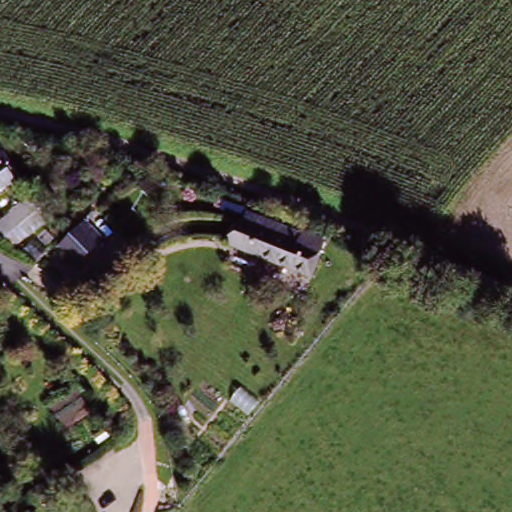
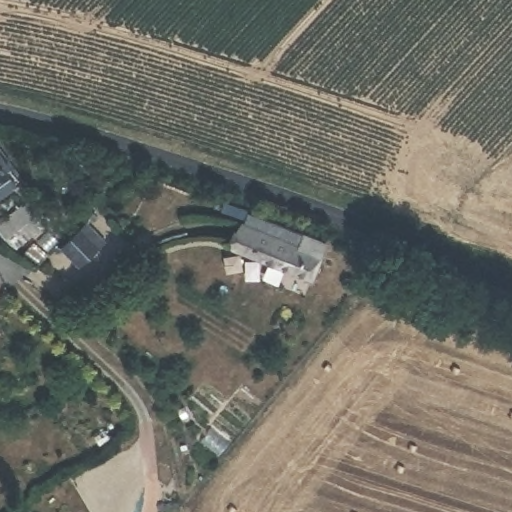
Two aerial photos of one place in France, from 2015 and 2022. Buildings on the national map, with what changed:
unchanged [(0,153),(16,178),(0,189),(0,153)]
unchanged [(7,237),(0,227),(0,225),(34,203),(41,214),(7,237)]
unchanged [(322,239),(307,276),(231,244),(245,214),(300,237),(302,230),(322,239)]
unchanged [(61,244),(85,224),(100,241),(76,262),(61,244)]

